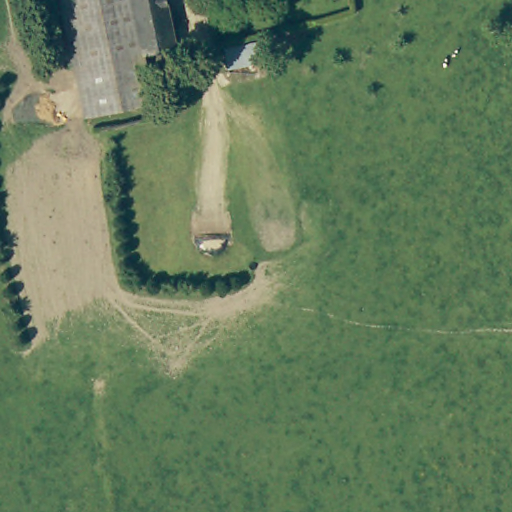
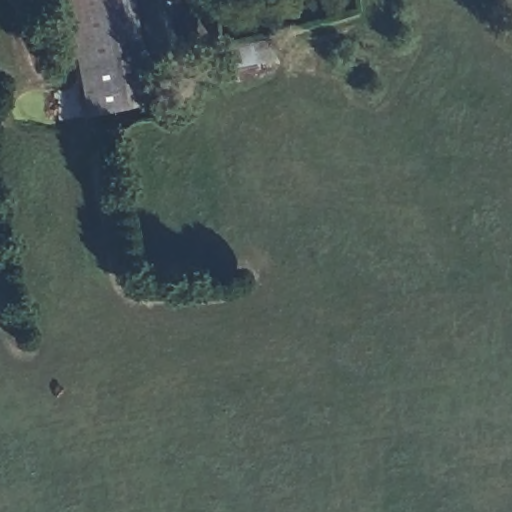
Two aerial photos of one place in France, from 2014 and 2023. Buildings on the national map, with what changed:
unchanged [(144,52),(155,104),(83,117),(60,0),(90,0),(105,59),(144,52)]
unchanged [(105,59),(90,0),(132,0),(144,52),(105,59)]
unchanged [(145,52),(144,52),(132,0),(166,0),(176,47),(145,52)]
unchanged [(257,55),(227,59),(224,45),(255,39),(257,55)]

